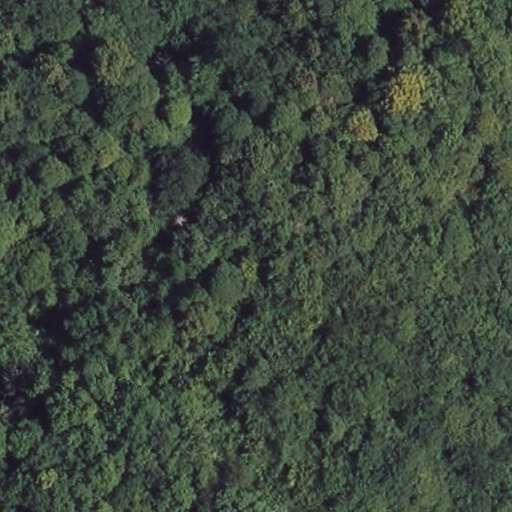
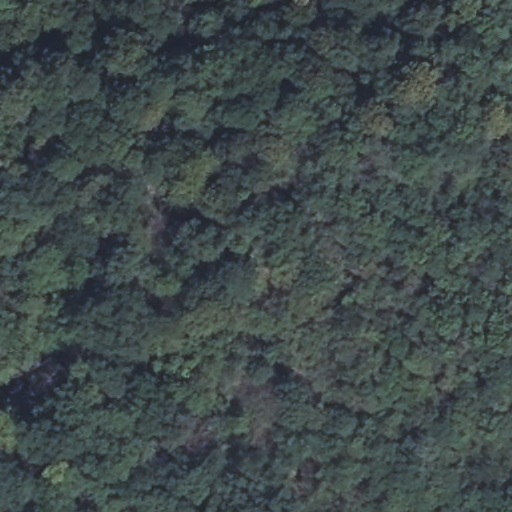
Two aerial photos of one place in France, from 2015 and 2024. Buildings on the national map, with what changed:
unchanged [(102,331),(92,352),(58,339),(69,313),(102,331)]

